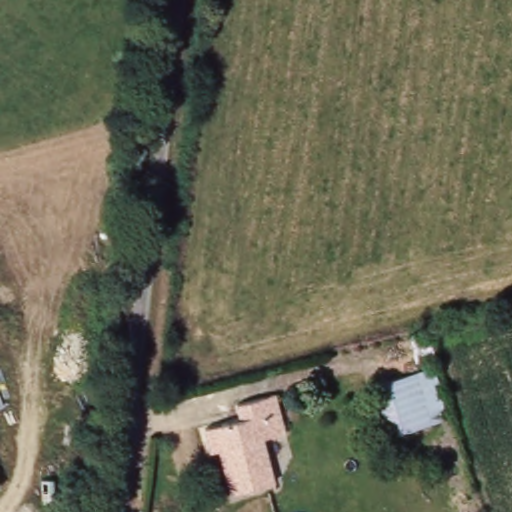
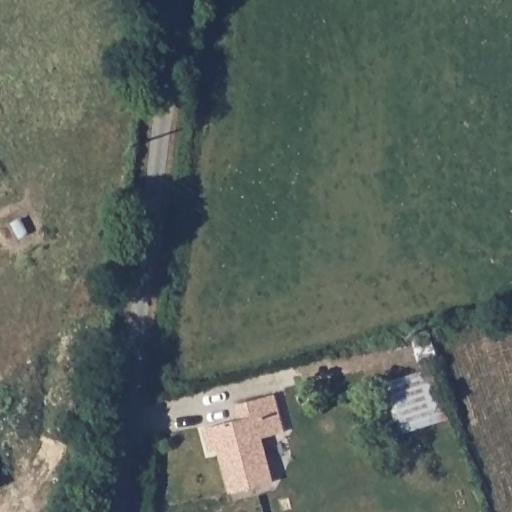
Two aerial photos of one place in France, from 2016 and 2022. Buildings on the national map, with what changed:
unchanged [(456,415),(397,436),(380,386),(440,366),(456,415)]
unchanged [(240,495),(228,452),(219,454),(214,430),(246,421),(242,405),(281,395),(291,434),(272,440),(281,485),(240,495)]
unchanged [(0,483),(0,476),(2,482),(0,483)]

